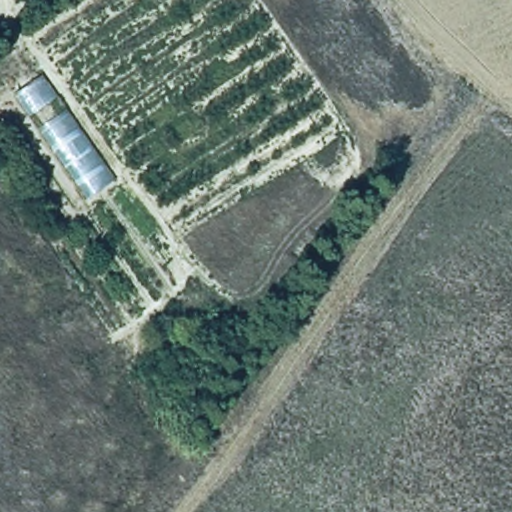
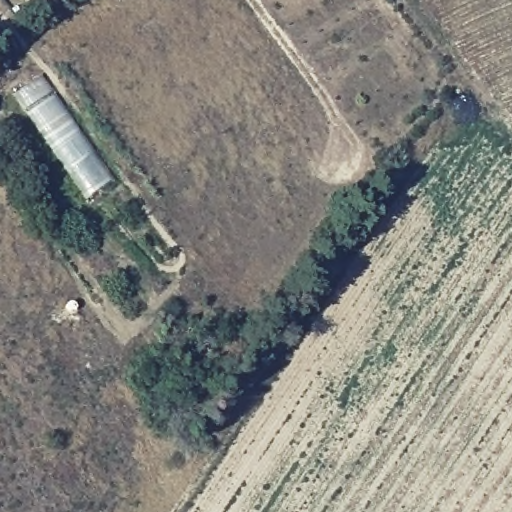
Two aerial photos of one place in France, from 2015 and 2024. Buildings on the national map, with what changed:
unchanged [(115,180),(89,197),(18,92),(43,75),(115,180)]

